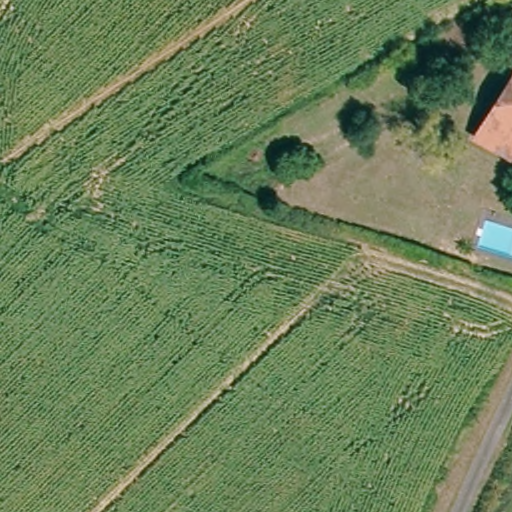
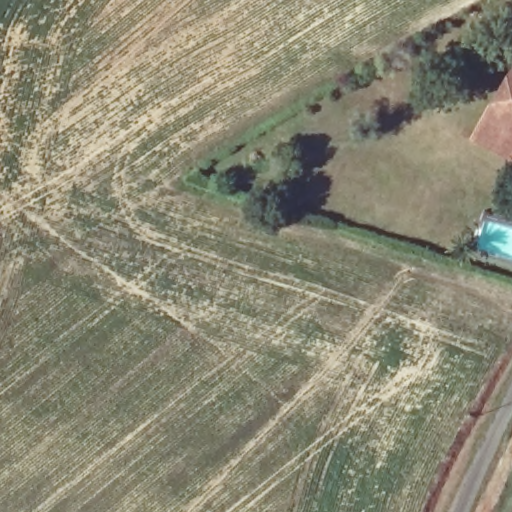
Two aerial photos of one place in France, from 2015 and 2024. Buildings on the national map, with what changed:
unchanged [(477,141),(512,85),(512,163),(477,141)]

